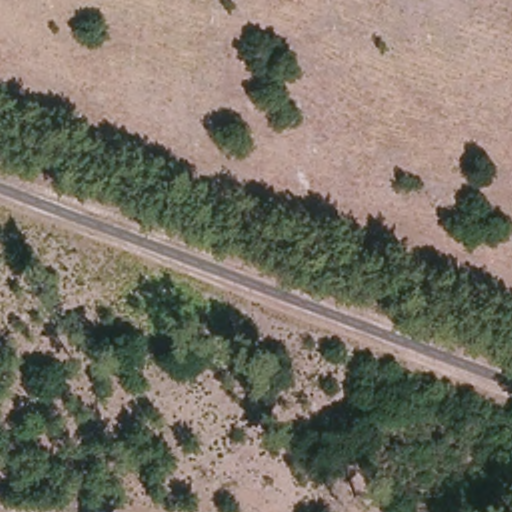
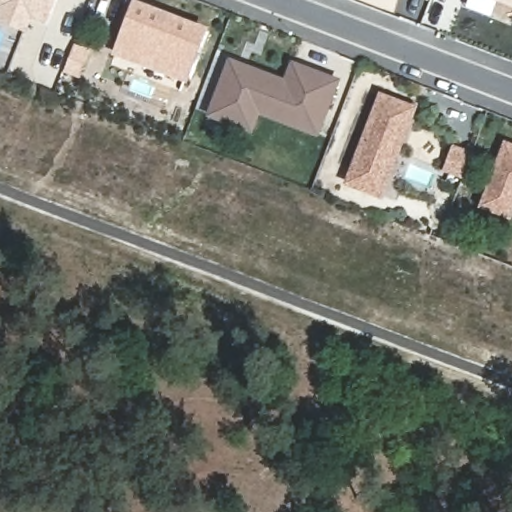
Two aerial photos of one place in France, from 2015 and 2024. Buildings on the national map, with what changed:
new [(34,18),(30,31),(0,19),(0,15),(3,6),(0,5),(0,0),(58,0),(49,23),(34,18)]
new [(512,0),(512,2),(507,0),(512,0)]
new [(140,1),(210,28),(194,70),(137,50),(144,33),(130,28),(140,1)]
new [(130,28),(144,33),(137,50),(194,70),(190,81),(120,54),(130,28)]
new [(232,59),(288,80),(295,61),(340,79),(326,115),(304,106),(300,115),(247,94),(239,113),(216,104),(232,59)]
new [(216,104),(239,113),(247,94),(300,115),(304,106),(326,115),(319,133),(261,110),(253,129),(212,113),(216,104)]
new [(418,108),(383,200),(348,186),(382,94),(418,108)]
new [(488,192),(507,143),(512,145),(512,207),(510,213),(484,203),(488,192)]

